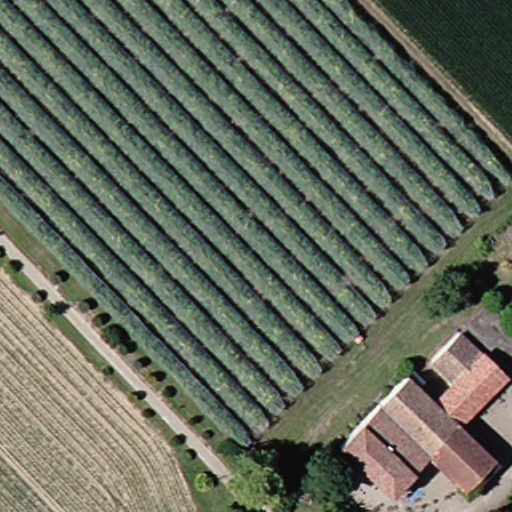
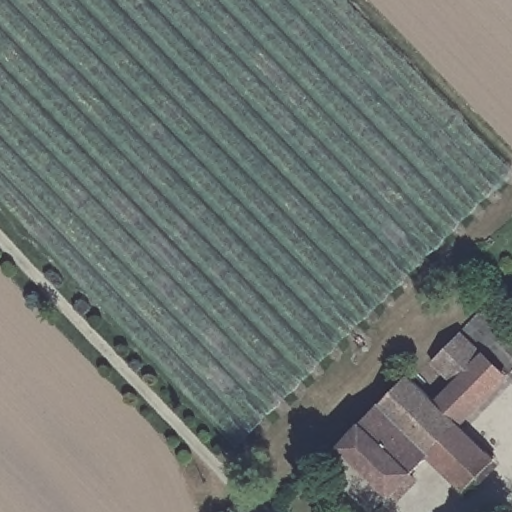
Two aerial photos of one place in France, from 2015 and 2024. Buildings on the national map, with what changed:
unchanged [(434,362),(466,335),(506,382),(455,425),(433,400),(452,382),(434,362)]
unchanged [(385,496),(378,487),(334,433),(407,372),(433,400),(455,425),(420,452),(402,467),(410,476),(385,496)]
unchanged [(485,460),(451,488),(420,452),(455,425),(485,460)]

